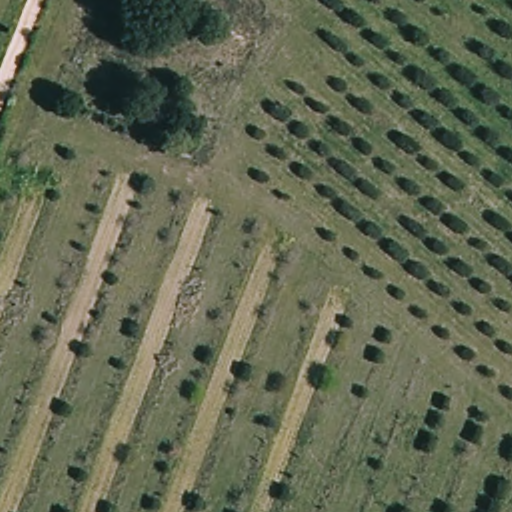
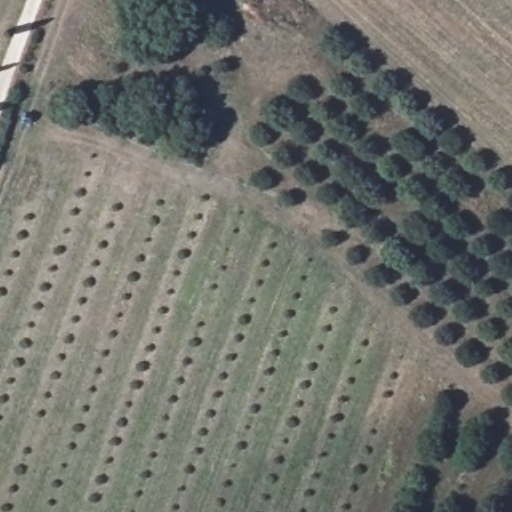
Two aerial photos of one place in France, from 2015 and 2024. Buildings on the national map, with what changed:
[]

